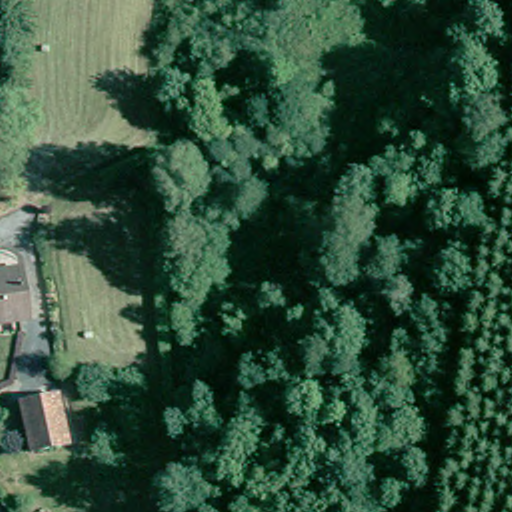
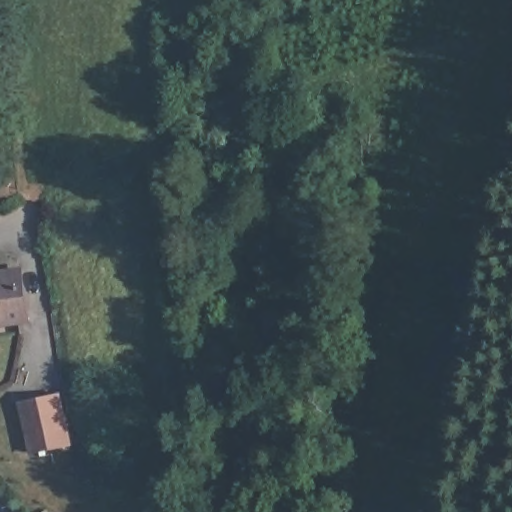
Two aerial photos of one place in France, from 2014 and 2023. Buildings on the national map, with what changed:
unchanged [(15,265),(24,320),(0,323),(0,267),(15,265)]
unchanged [(34,402),(69,398),(75,451),(39,455),(34,402)]

